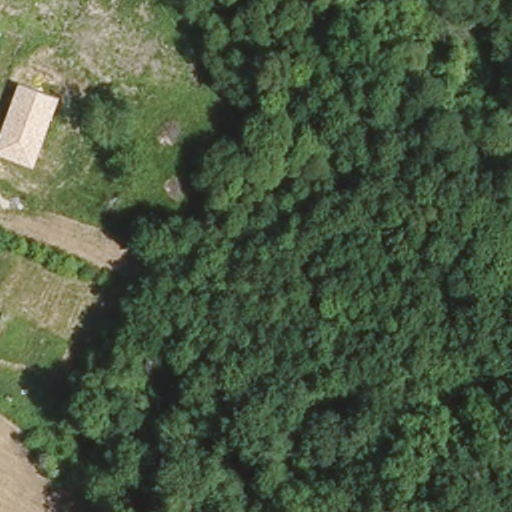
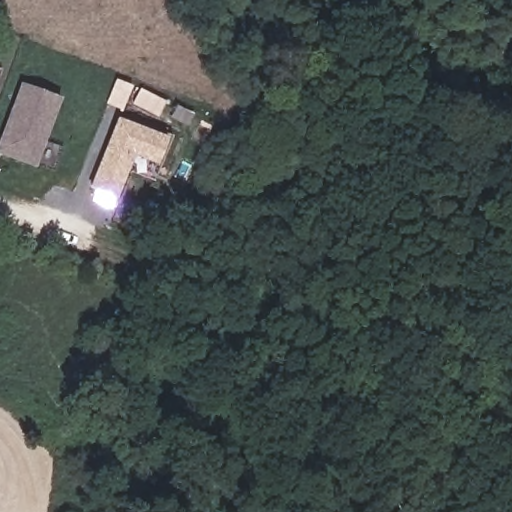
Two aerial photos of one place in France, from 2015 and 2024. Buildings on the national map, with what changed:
unchanged [(0,154),(0,139),(20,83),(61,98),(35,167),(0,154)]
new [(166,102),(159,118),(131,105),(139,88),(166,102)]
new [(89,189),(117,117),(172,137),(160,168),(134,158),(116,200),(89,189)]

